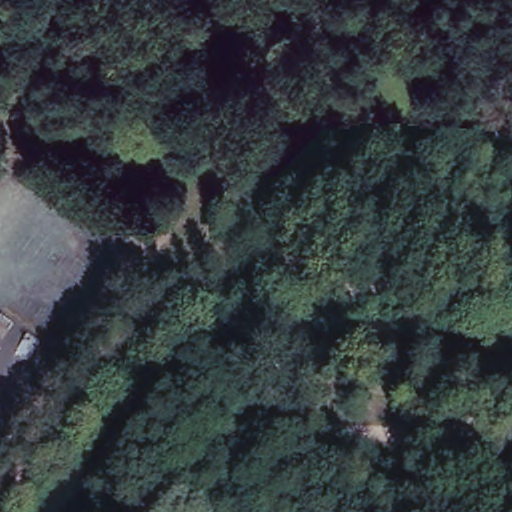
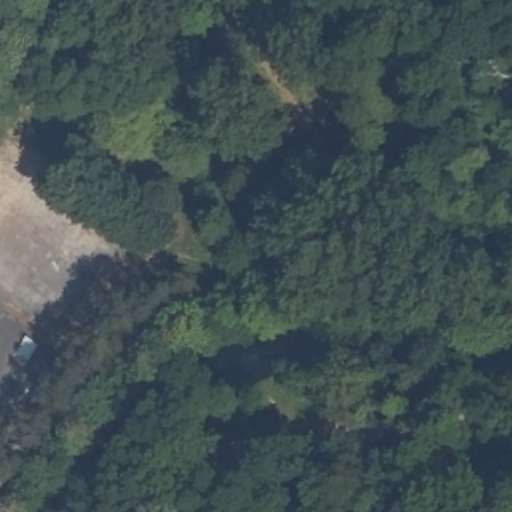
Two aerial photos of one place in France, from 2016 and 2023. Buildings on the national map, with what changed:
unchanged [(82,38),(99,20),(139,47),(123,66),(82,38)]

